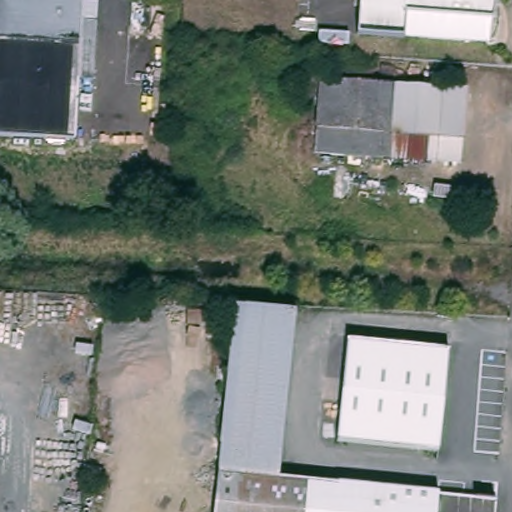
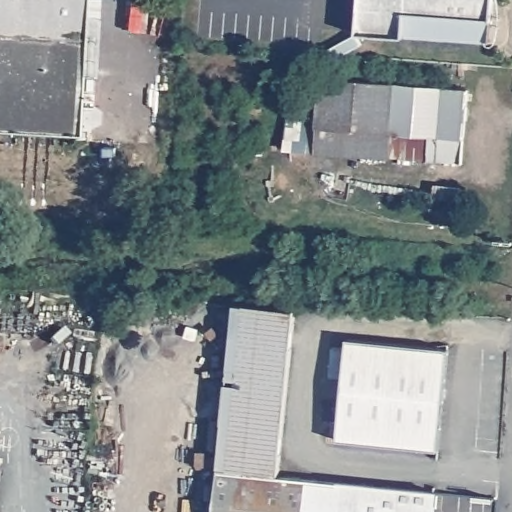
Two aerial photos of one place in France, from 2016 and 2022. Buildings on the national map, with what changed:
unchanged [(100,20),(98,63),(81,61),(77,139),(0,134),(0,0),(85,0),(85,19),(100,20)]
unchanged [(361,30),(364,0),(497,0),(494,40),(361,30)]
unchanged [(323,82),(472,93),(465,166),(393,160),(395,138),(320,131),(323,82)]
unchanged [(395,138),(393,160),(393,163),(317,156),(320,131),(395,138)]
unchanged [(300,310),(283,474),(244,469),(221,468),(239,304),(300,310)]
unchanged [(452,349),(442,451),(342,439),(352,339),(452,349)]
unchanged [(441,512),(217,512),(221,468),(244,469),(283,474),(443,491),(441,512)]

